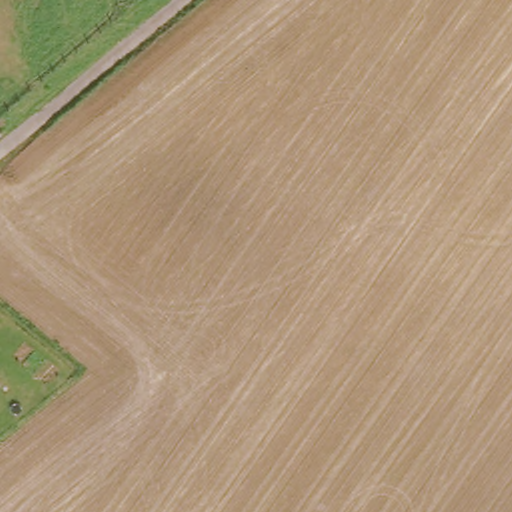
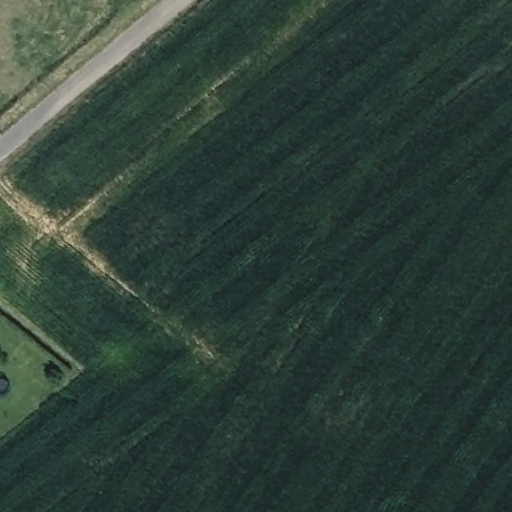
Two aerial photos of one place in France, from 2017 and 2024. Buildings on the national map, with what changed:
unchanged [(15,136),(0,147),(0,131),(7,125),(15,136)]

